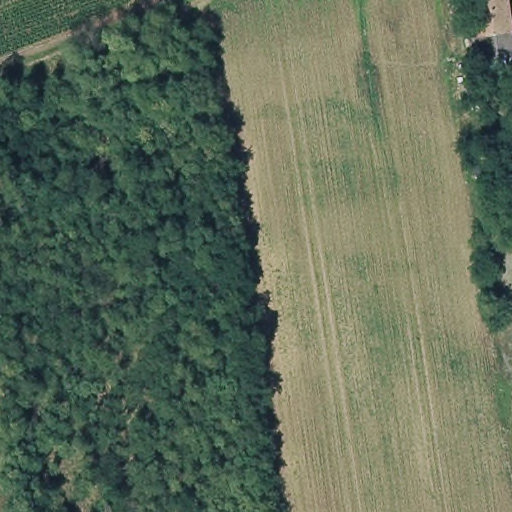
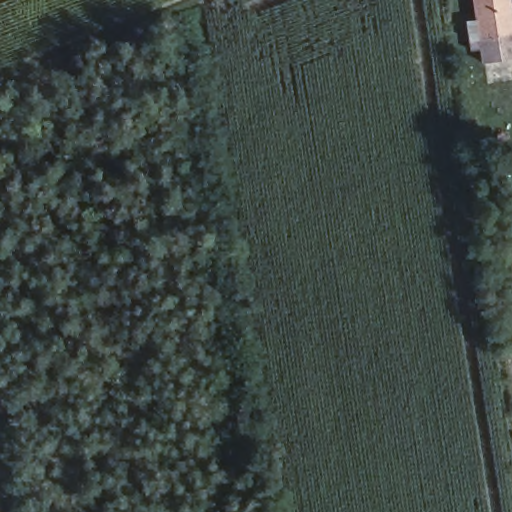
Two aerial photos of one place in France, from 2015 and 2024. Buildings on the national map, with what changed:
unchanged [(473,37),(467,0),(508,0),(512,24),(512,30),(473,37)]

